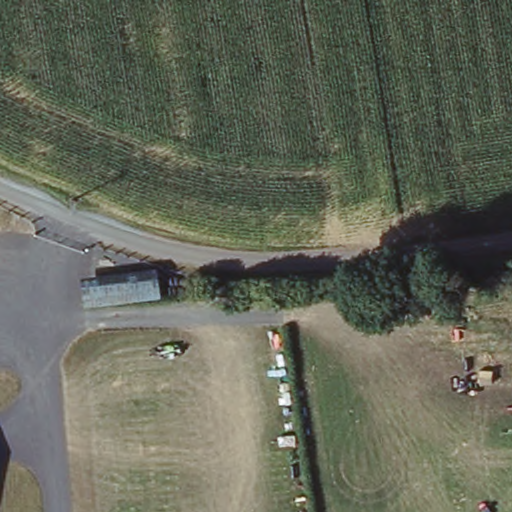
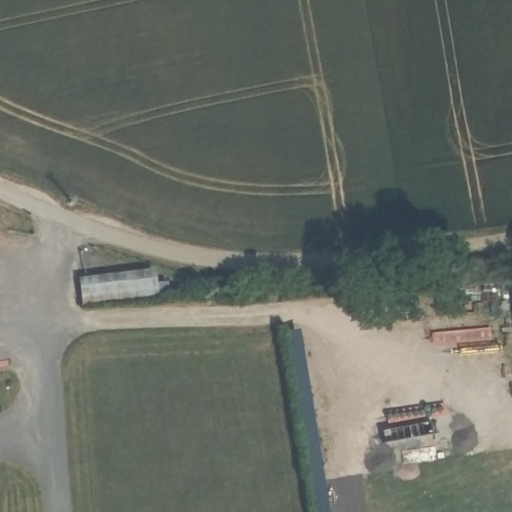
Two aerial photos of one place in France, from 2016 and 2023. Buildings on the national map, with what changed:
unchanged [(145,268),(145,265),(155,264),(158,296),(84,306),(81,276),(145,268)]

